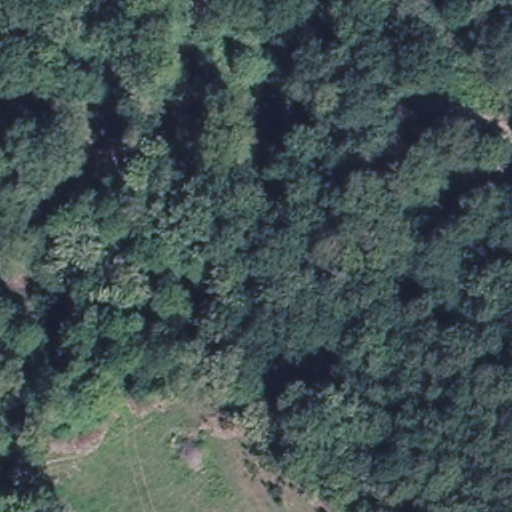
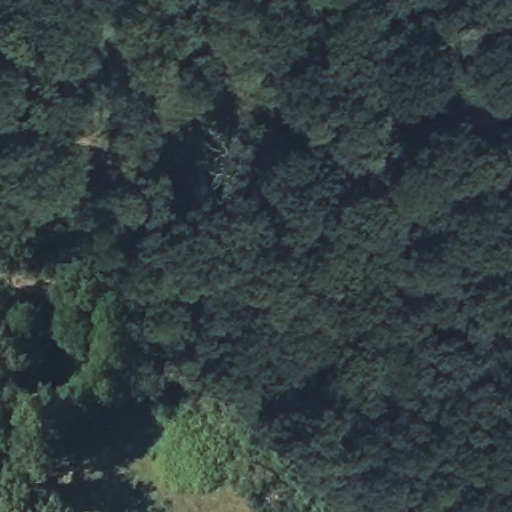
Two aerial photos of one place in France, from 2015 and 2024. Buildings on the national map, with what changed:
[]

